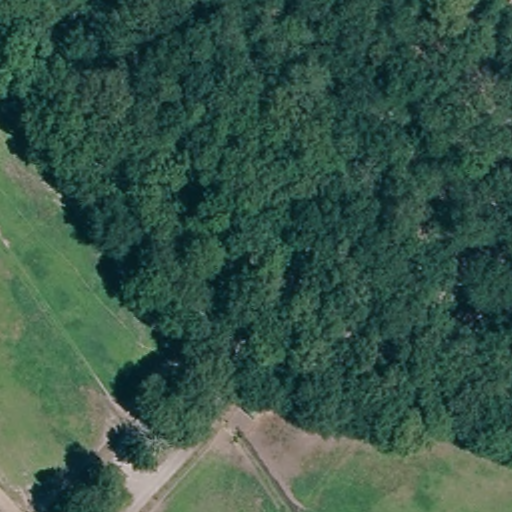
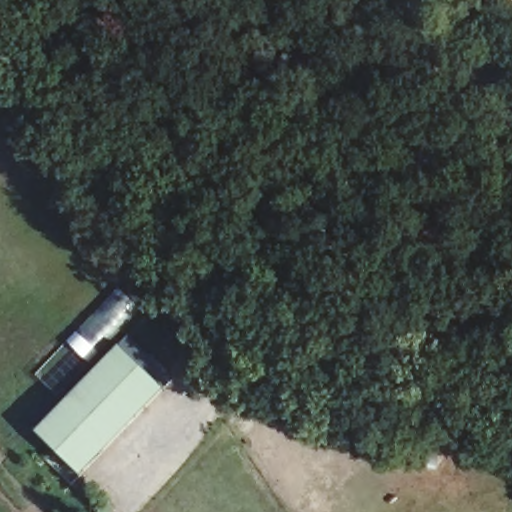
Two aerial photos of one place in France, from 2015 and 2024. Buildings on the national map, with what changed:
new [(118,331),(165,373),(83,462),(36,421),(118,331)]

